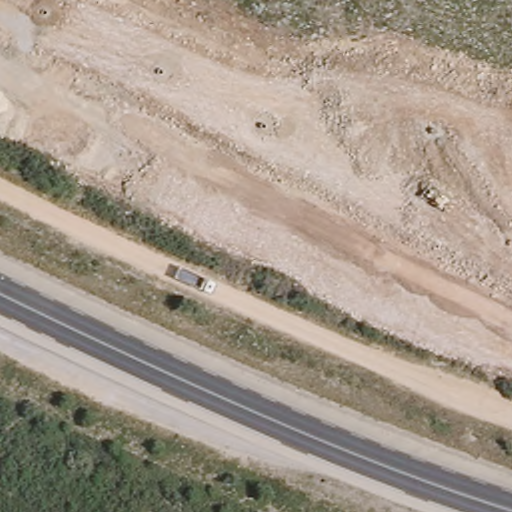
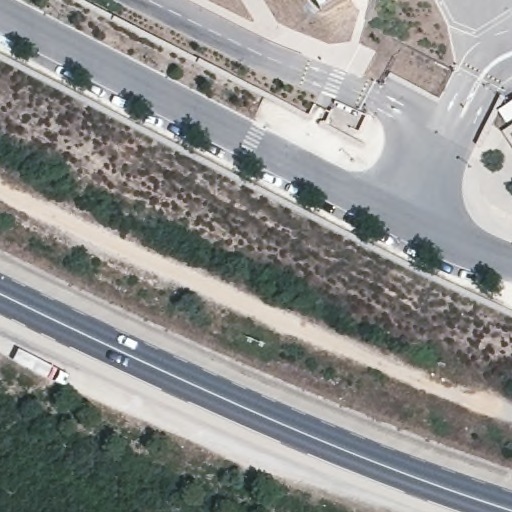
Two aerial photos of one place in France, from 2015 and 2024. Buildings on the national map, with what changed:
new [(316,0),(338,0),(322,10),(316,0)]

